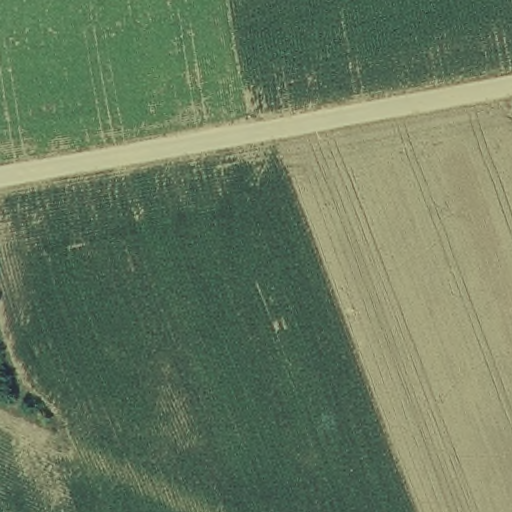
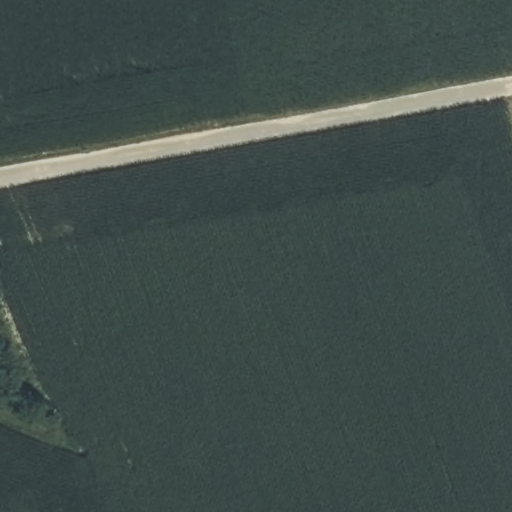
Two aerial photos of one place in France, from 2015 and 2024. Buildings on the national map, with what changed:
[]

